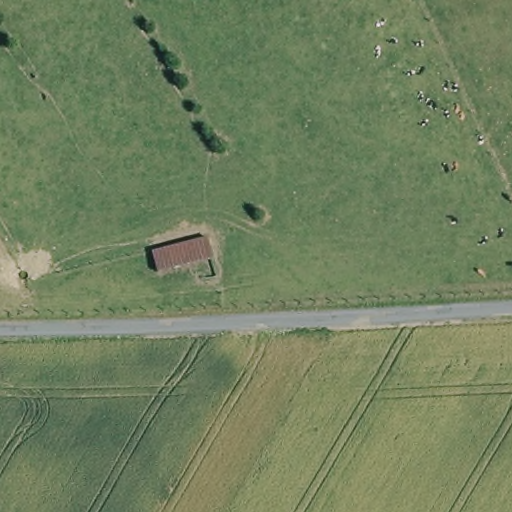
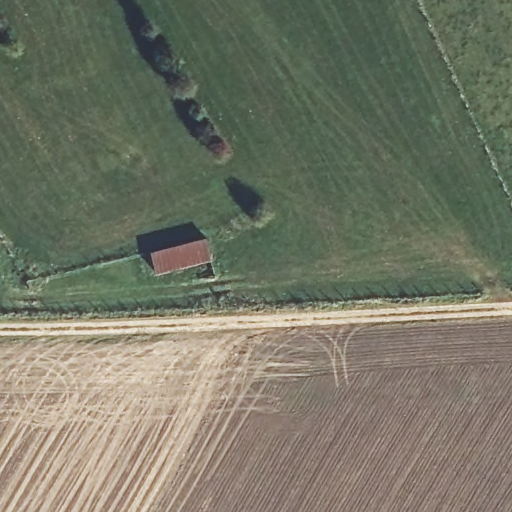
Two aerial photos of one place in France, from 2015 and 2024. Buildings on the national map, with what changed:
unchanged [(207,235),(212,257),(159,270),(154,250),(207,235)]

